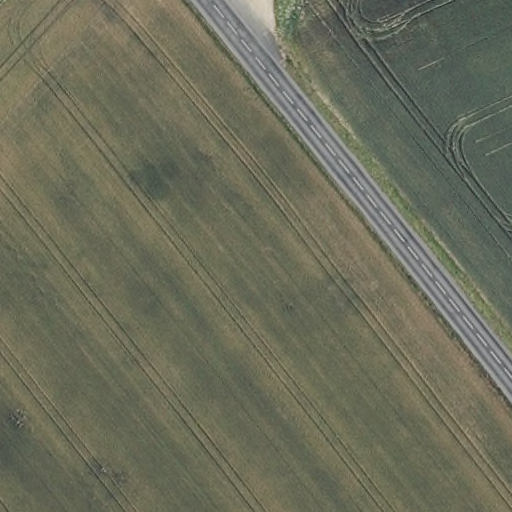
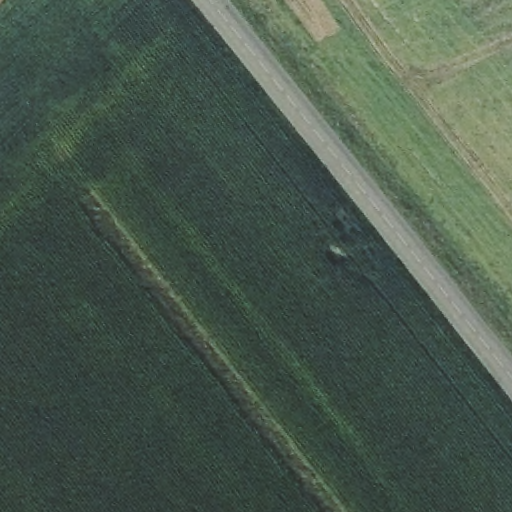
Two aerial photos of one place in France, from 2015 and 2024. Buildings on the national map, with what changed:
[]

